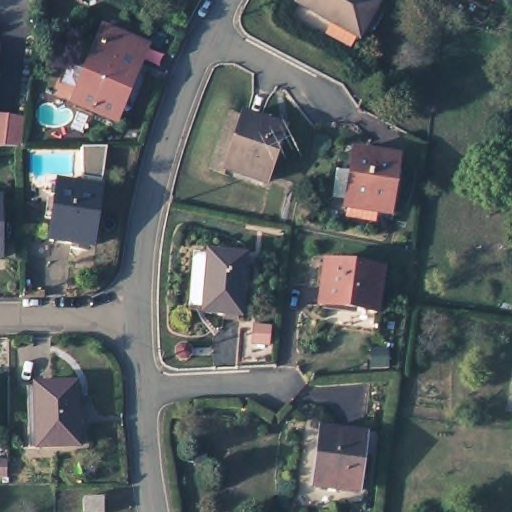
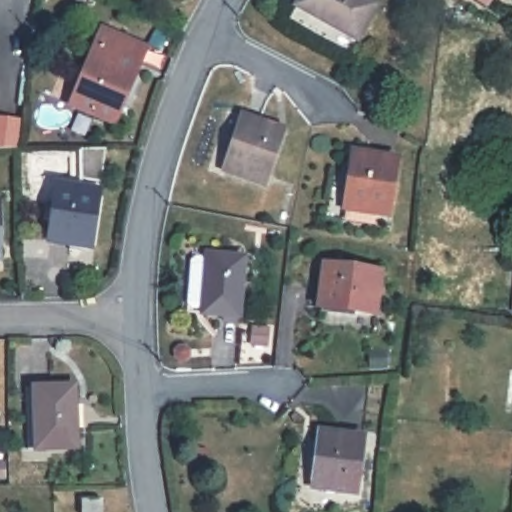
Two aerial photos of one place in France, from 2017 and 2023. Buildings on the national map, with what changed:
unchanged [(355,32),(342,24),(297,0),(373,0),(355,32)]
unchanged [(106,18),(146,35),(114,107),(75,91),(106,18)]
unchanged [(237,115),(278,129),(262,181),(220,168),(237,115)]
unchanged [(27,120),(25,156),(0,155),(0,117),(27,120)]
unchanged [(355,145),(398,152),(390,207),(347,200),(355,145)]
unchanged [(107,146),(102,179),(83,177),(82,146),(107,146)]
unchanged [(58,182),(101,188),(93,244),(50,238),(58,182)]
unchanged [(207,305),(197,304),(193,299),(197,257),(202,253),(212,254),(212,250),(250,253),(245,313),(207,310),(207,305)]
unchanged [(322,261),(377,268),(370,309),(317,303),(322,261)]
unchanged [(255,323),(271,324),(270,342),(254,340),(255,323)]
unchanged [(387,343),(387,360),(372,360),(372,343),(387,343)]
unchanged [(73,377),(75,438),(35,439),(33,377),(73,377)]
unchanged [(320,428),(363,434),(357,490),(313,485),(320,428)]
unchanged [(195,447),(205,448),(202,463),(193,461),(195,447)]
unchanged [(5,454),(5,469),(0,470),(0,455),(5,454)]
unchanged [(105,490),(105,507),(85,507),(85,490),(105,490)]

